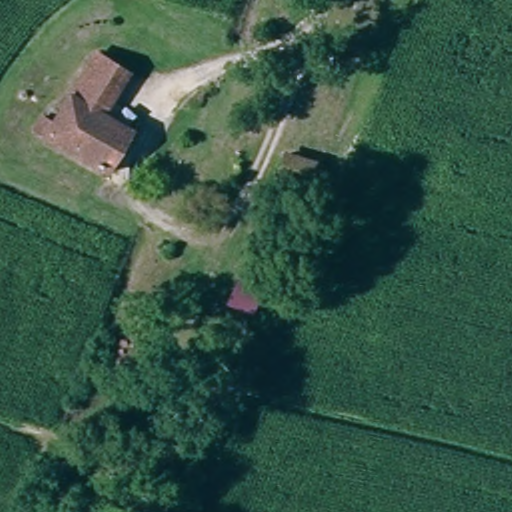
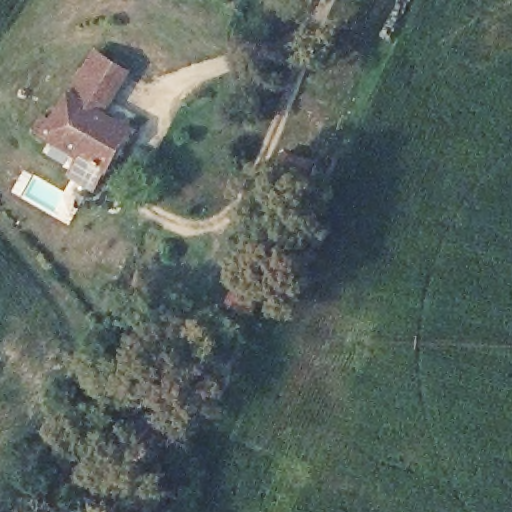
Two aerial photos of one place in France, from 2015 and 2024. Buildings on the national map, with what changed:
unchanged [(43,134),(97,48),(135,72),(109,115),(137,130),(111,174),(43,134)]

